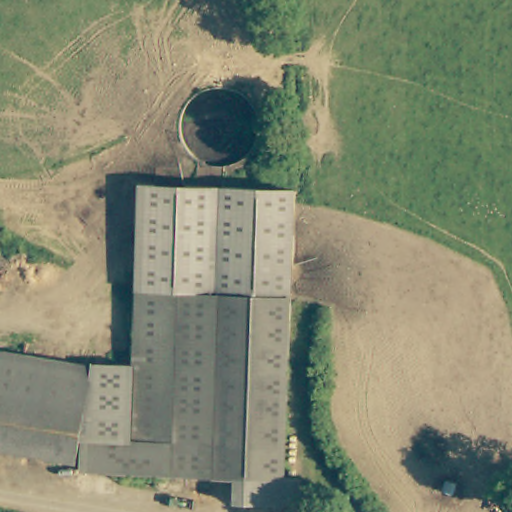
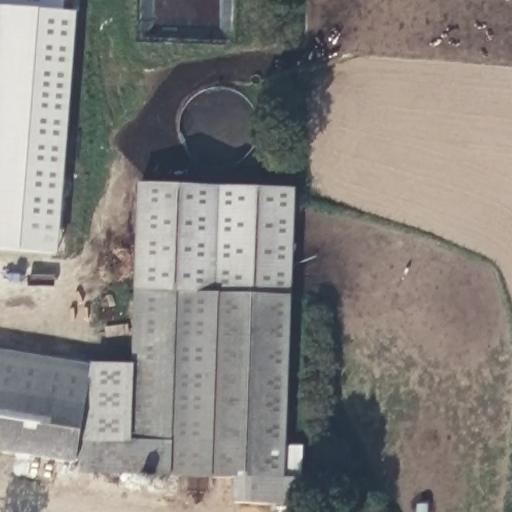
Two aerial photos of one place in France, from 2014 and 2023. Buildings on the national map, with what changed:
new [(0,249),(0,6),(77,12),(56,254),(0,249)]
unchanged [(303,195),(296,292),(140,288),(147,186),(303,195)]
unchanged [(95,365),(135,367),(140,288),(296,292),(281,483),(236,481),(172,478),(174,443),(82,440),(79,439),(75,464),(0,450),(0,351),(94,368),(95,365)]
unchanged [(82,440),(174,443),(172,478),(81,473),(82,440)]
unchanged [(281,483),(297,485),(297,509),(235,507),(236,481),(281,483)]

